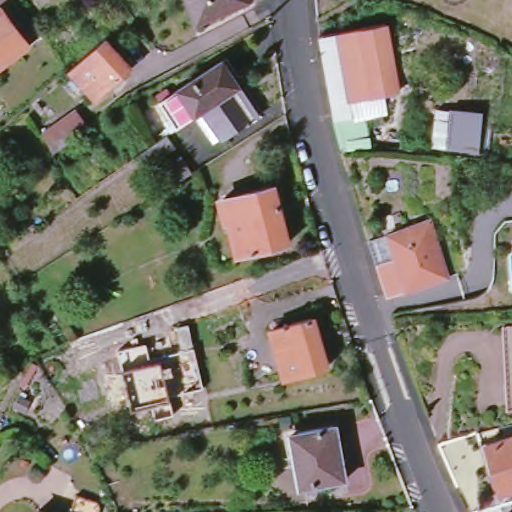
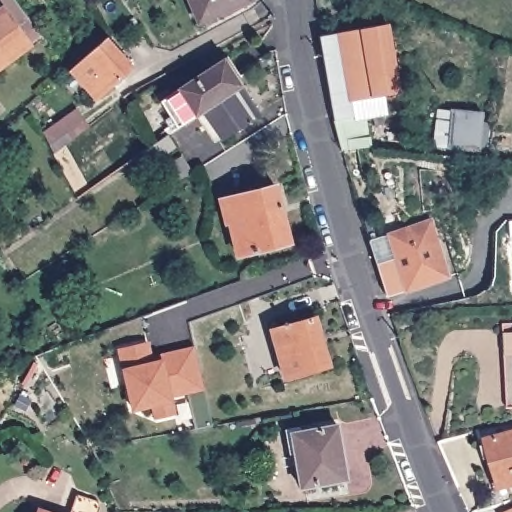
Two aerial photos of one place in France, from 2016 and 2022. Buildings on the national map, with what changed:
unchanged [(0,0),(1,0),(5,4),(32,41),(0,64),(0,0)]
unchanged [(199,21),(189,0),(249,0),(241,4),(199,21)]
unchanged [(335,137),(330,119),(329,115),(315,31),(384,19),(395,88),(381,90),(385,110),(360,114),(366,135),(335,137)]
unchanged [(132,66),(97,99),(70,69),(106,38),(132,66)]
unchanged [(242,87),(204,113),(202,111),(177,128),(161,101),(224,60),(242,87)]
unchanged [(259,115),(222,140),(204,113),(242,87),(259,115)]
unchanged [(438,109),(484,114),(480,151),(434,147),(438,109)]
unchanged [(89,126),(54,154),(43,133),(77,110),(89,126)]
unchanged [(155,143),(164,155),(151,164),(142,152),(150,148),(155,143)]
unchanged [(105,147),(122,169),(80,199),(66,170),(105,147)]
unchanged [(159,172),(182,157),(192,173),(169,188),(159,172)]
unchanged [(238,255),(224,198),(275,185),(289,242),(238,255)]
unchanged [(432,222),(449,278),(387,298),(370,240),(432,222)]
unchanged [(240,304),(210,315),(202,294),(232,284),(240,304)]
unchanged [(285,377),(272,329),(315,317),(329,365),(285,377)]
unchanged [(508,409),(504,326),(512,326),(512,409),(508,409)]
new [(150,358),(163,354),(195,348),(204,388),(170,396),(174,415),(155,419),(152,405),(132,409),(118,349),(147,343),(150,358)]
unchanged [(338,426),(347,480),(300,488),(292,433),(338,426)]
unchanged [(501,492),(487,444),(512,436),(512,488),(501,492)]
unchanged [(481,468),(452,474),(440,449),(470,442),(481,468)]
unchanged [(77,495),(100,502),(102,507),(100,512),(71,512),(77,495)]
unchanged [(39,511),(43,512),(39,512),(39,511)]

